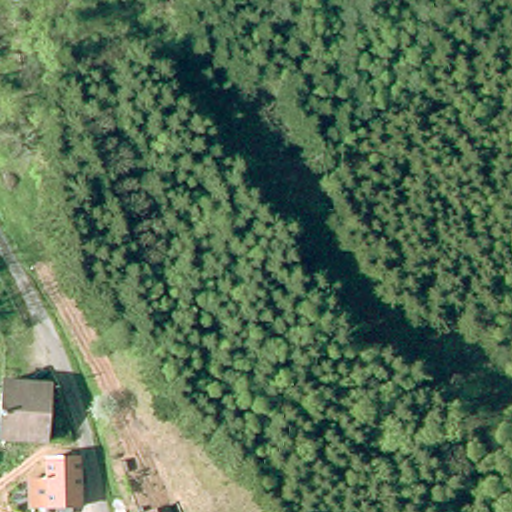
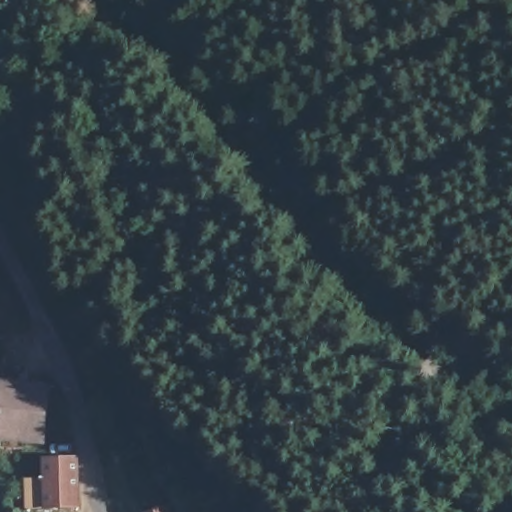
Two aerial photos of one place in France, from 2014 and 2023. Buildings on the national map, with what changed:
unchanged [(42,390),(47,435),(7,440),(0,389),(0,385),(37,380),(42,390)]
unchanged [(70,508),(46,512),(43,512),(42,456),(68,459),(70,508)]

